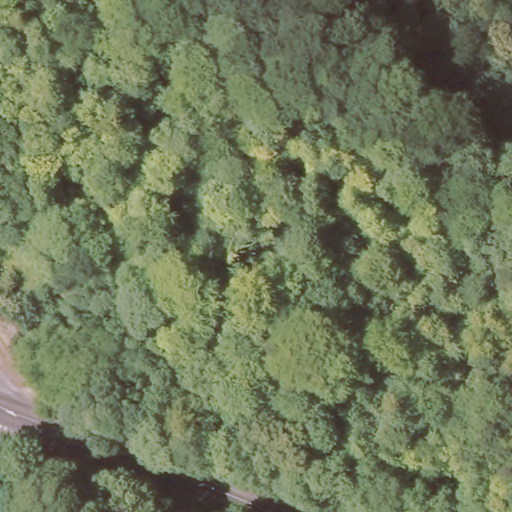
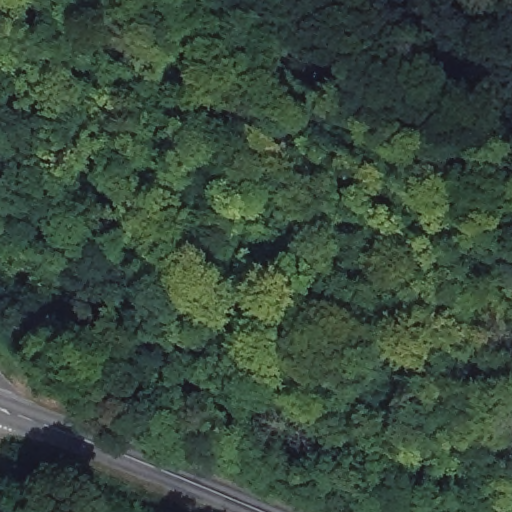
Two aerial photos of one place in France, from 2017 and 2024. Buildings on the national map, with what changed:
unchanged [(74,344),(55,325),(72,307),(91,327),(74,344)]

